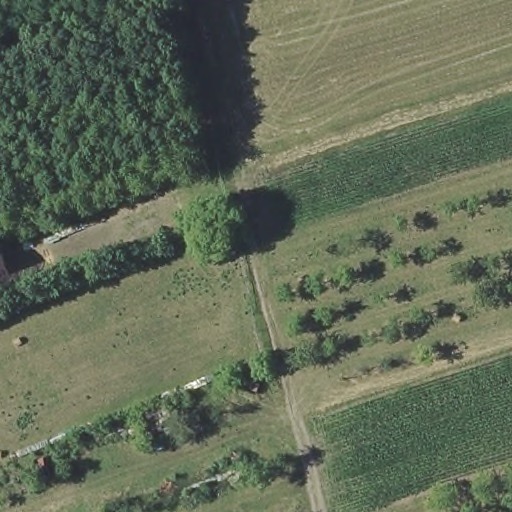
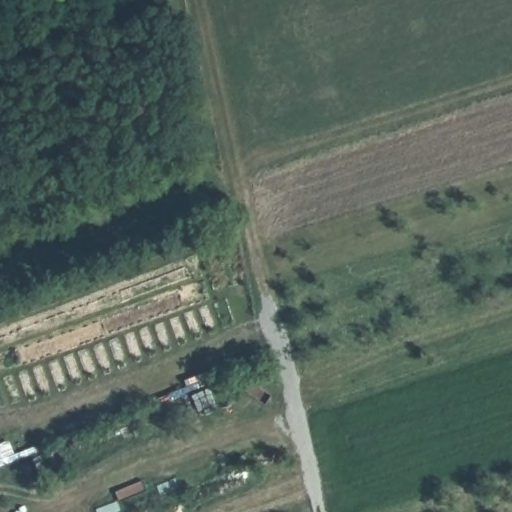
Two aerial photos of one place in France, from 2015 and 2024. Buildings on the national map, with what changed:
unchanged [(175,192),(188,223),(0,295),(0,259),(175,192)]

